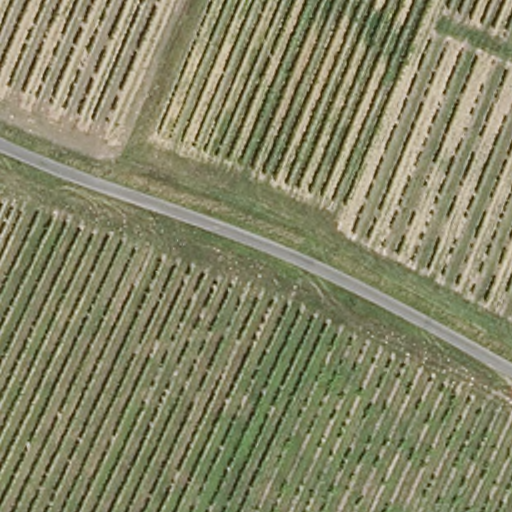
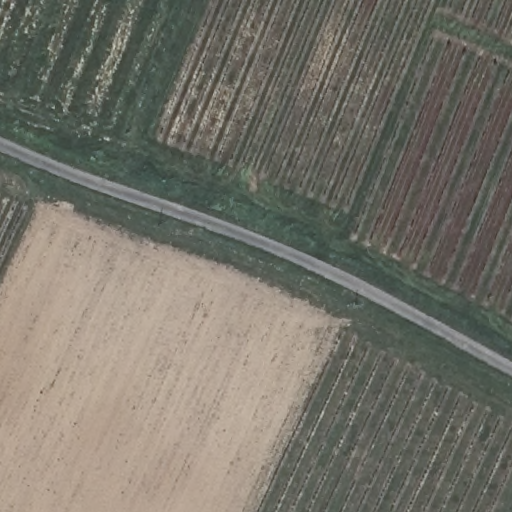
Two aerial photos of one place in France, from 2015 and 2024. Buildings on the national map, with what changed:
[]

